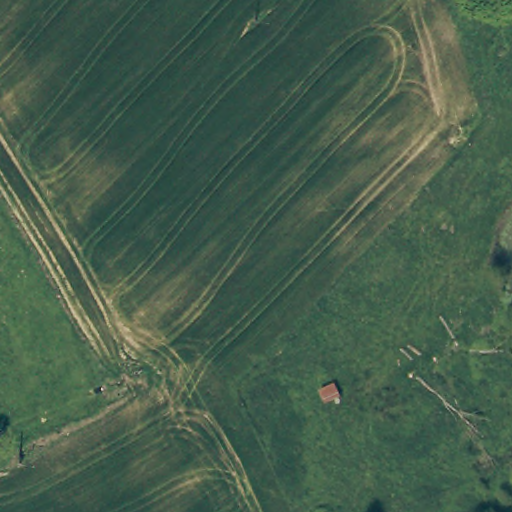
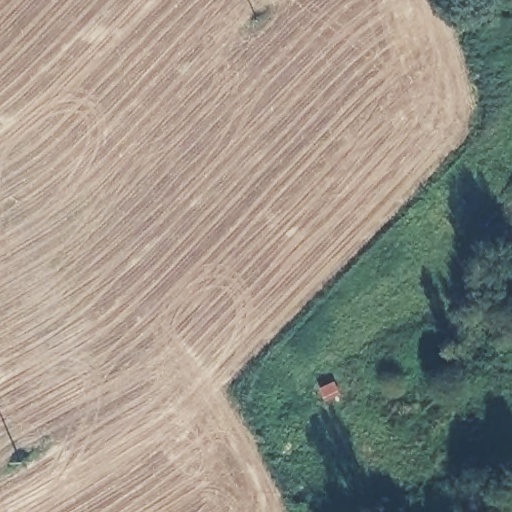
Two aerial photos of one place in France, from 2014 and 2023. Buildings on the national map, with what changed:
[]

